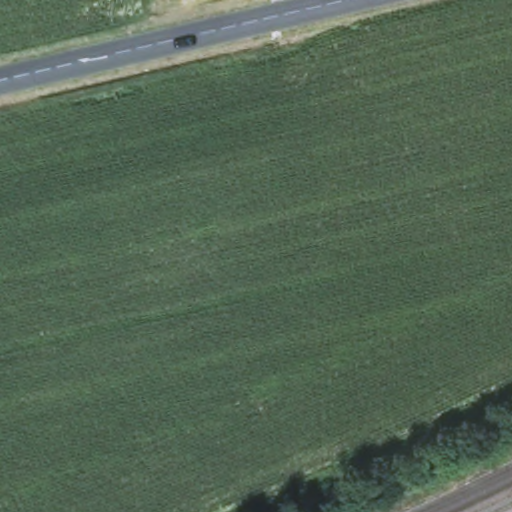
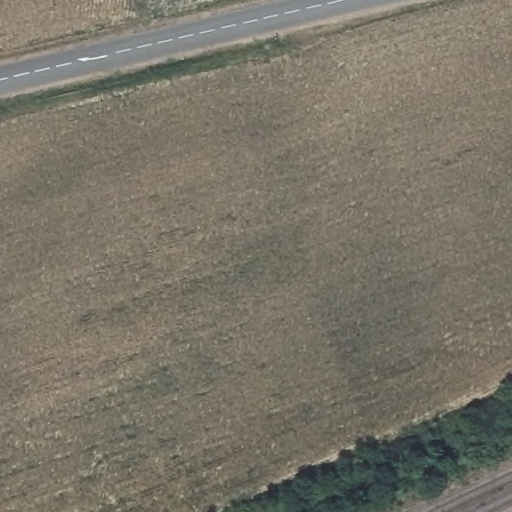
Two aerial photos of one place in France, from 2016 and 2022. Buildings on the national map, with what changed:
[]

